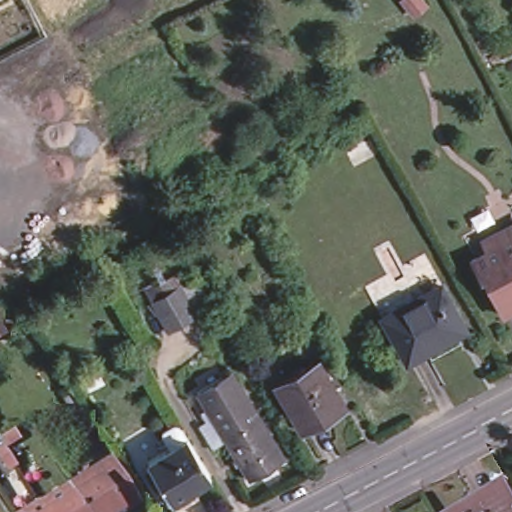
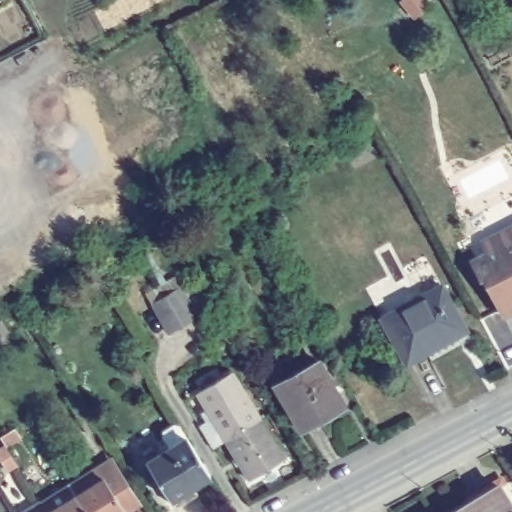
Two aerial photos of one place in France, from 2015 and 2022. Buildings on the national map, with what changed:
unchanged [(405,20),(391,4),(396,0),(408,0),(416,9),(405,20)]
unchanged [(482,276),(480,277),(470,258),(486,250),(481,239),(512,223),(512,308),(502,313),(482,276)]
unchanged [(435,285),(460,329),(403,362),(377,317),(435,285)]
unchanged [(162,340),(145,310),(161,301),(172,294),(190,323),(180,330),(162,340)]
unchanged [(316,359),(341,405),(297,429),(272,382),(316,359)]
unchanged [(222,435),(193,388),(227,367),(256,413),(222,435)]
unchanged [(281,452),(246,474),(222,435),(256,413),(281,452)]
unchanged [(12,417),(17,426),(2,435),(0,431),(0,425),(12,417)]
unchanged [(190,487),(193,495),(172,506),(145,459),(169,446),(162,436),(178,426),(210,477),(190,487)]
unchanged [(7,508),(37,490),(62,475),(74,468),(73,467),(103,449),(110,460),(132,495),(119,504),(106,512),(9,512),(7,508)]
unchanged [(497,485),(512,511),(512,512),(450,512),(497,485)]

